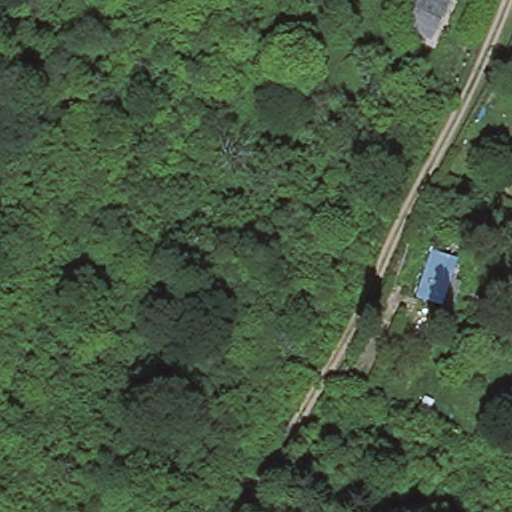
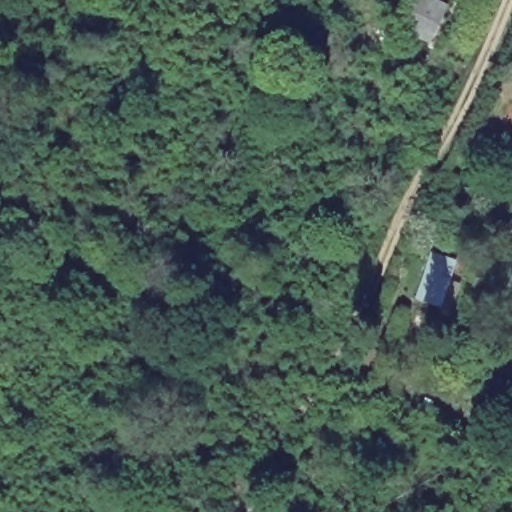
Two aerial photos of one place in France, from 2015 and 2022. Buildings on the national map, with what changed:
unchanged [(449,8),(433,42),(407,30),(421,0),(432,0),(449,8)]
unchanged [(427,296),(434,280),(445,255),(462,263),(450,287),(445,303),(427,296)]

